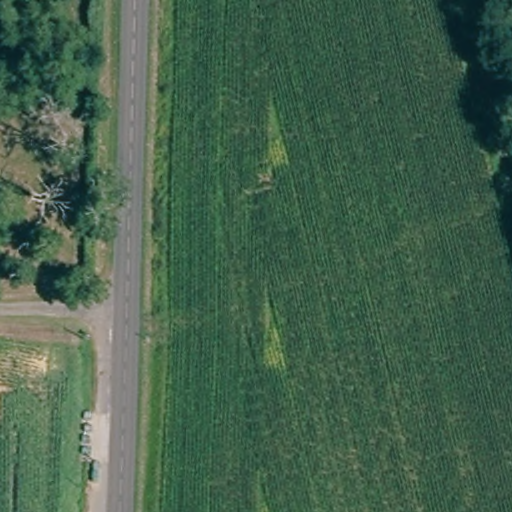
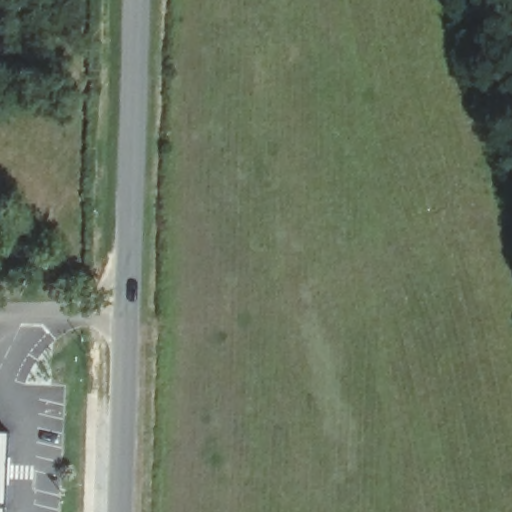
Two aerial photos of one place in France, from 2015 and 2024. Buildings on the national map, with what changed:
new [(8,435),(5,512),(0,512),(0,435),(8,435)]

